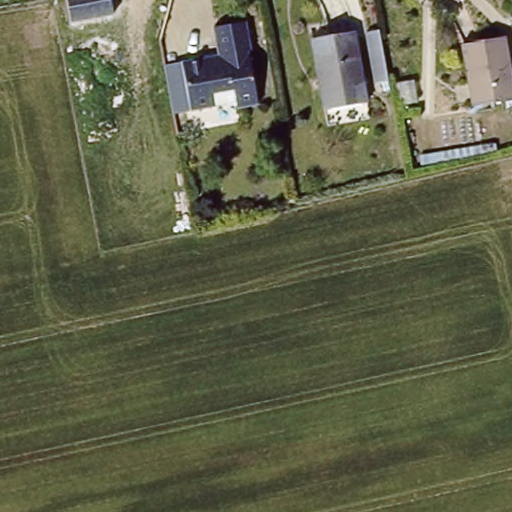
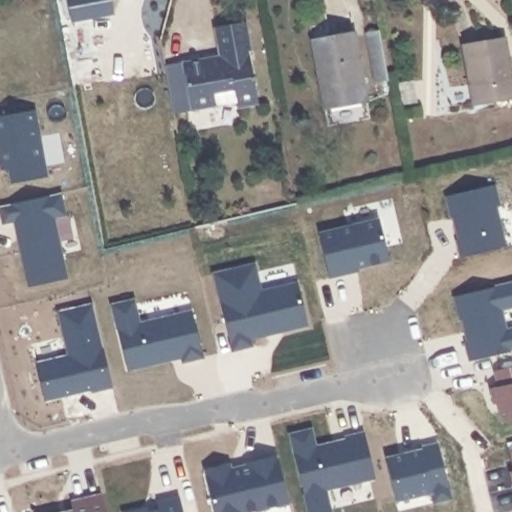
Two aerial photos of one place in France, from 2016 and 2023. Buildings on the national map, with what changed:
unchanged [(116,17),(73,25),(68,0),(112,0),(116,17)]
unchanged [(238,105),(237,100),(193,109),(184,61),(211,56),(211,59),(220,57),(213,25),(245,19),(251,47),(248,48),(258,101),(238,105)]
unchanged [(363,105),(322,113),(309,42),(351,35),(363,105)]
unchanged [(474,110),(464,50),(507,42),(512,73),(512,102),(474,110)]
unchanged [(370,91),(362,46),(376,44),(385,90),(370,91)]
new [(36,111),(48,176),(14,183),(11,169),(4,170),(0,150),(0,118),(36,111)]
new [(495,185),(500,206),(497,206),(506,247),(461,257),(457,240),(459,240),(456,225),(459,224),(457,215),(452,217),(447,195),(495,185)]
new [(62,193),(67,215),(56,217),(69,278),(31,286),(16,221),(5,223),(2,207),(62,193)]
new [(380,220),(390,261),(347,271),(348,273),(330,277),(320,234),(380,220)]
new [(256,263),(262,292),(299,283),(309,325),(283,331),(282,328),(266,333),(267,335),(251,340),(253,346),(233,351),(214,274),(256,263)]
new [(502,310),(507,331),(512,330),(512,351),(470,361),(465,341),(470,340),(468,333),(466,331),(462,319),(460,320),(454,297),(512,283),(512,307),(502,310)]
new [(135,300),(142,325),(194,311),(205,356),(184,361),(182,354),(173,356),(173,358),(129,369),(113,305),(135,300)]
new [(71,355),(61,312),(95,305),(114,386),(93,391),(92,387),(81,390),(79,392),(46,400),(38,363),(71,355)]
new [(495,370),(512,366),(512,421),(503,423),(498,403),(495,403),(491,388),(499,386),(495,370)]
new [(317,445),(335,441),(337,443),(347,441),(346,436),(366,432),(377,477),(327,489),(332,512),(309,512),(291,434),(313,428),(317,445)]
new [(410,452),(411,455),(422,452),(421,447),(438,442),(451,498),(434,501),(432,491),(397,500),(387,457),(410,452)]
new [(510,450),(512,449),(512,458),(510,450)]
new [(232,471),(249,467),(247,461),(279,455),(290,503),(249,512),(215,512),(205,468),(230,462),(232,471)]
new [(512,471),(512,475),(511,471),(512,471)]
new [(73,501),(104,494),(108,512),(65,512),(75,510),(73,501)]
new [(149,510),(160,508),(158,501),(181,496),(184,512),(133,512),(149,508),(149,510)]

